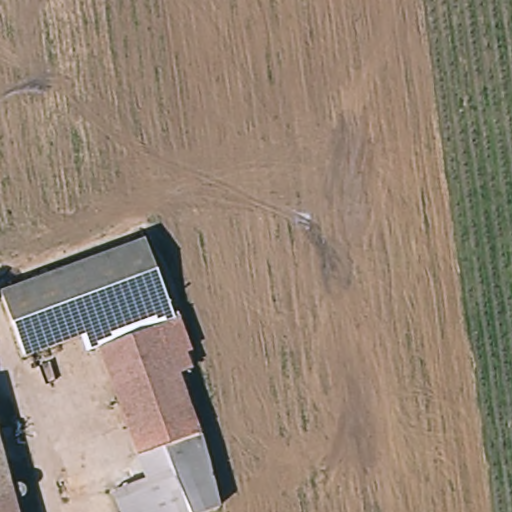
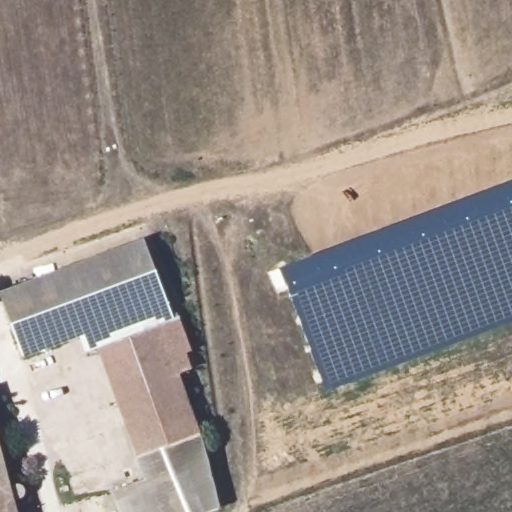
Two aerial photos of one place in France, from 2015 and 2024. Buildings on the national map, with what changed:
new [(281,265),(512,179),(512,320),(326,390),(281,265)]
unchanged [(21,353),(0,294),(0,293),(144,239),(165,300),(172,318),(158,325),(98,347),(84,352),(76,332),(21,353)]
unchanged [(98,347),(158,325),(196,434),(138,456),(98,347)]
unchanged [(138,456),(196,434),(222,504),(201,512),(124,512),(117,490),(146,480),(138,456)]
unchanged [(16,512),(0,512),(0,453),(16,512)]

